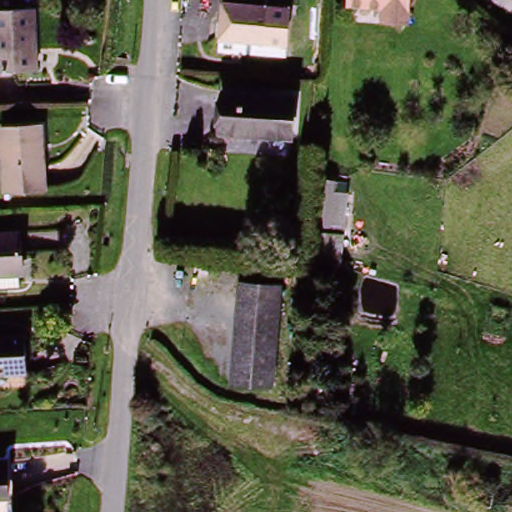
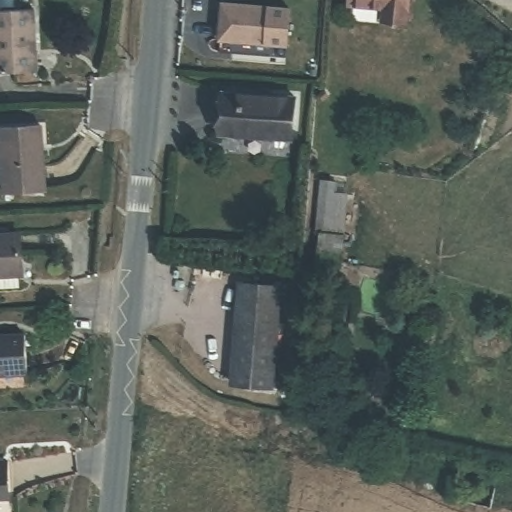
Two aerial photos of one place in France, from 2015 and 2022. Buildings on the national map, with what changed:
unchanged [(408,0),(407,10),(383,11),(383,5),(349,2),(349,0),(408,0)]
unchanged [(262,45),(216,40),(220,5),(265,9),(262,45)]
unchanged [(0,14),(35,11),(38,74),(0,76),(0,14)]
unchanged [(504,81),(512,65),(512,86),(504,81)]
unchanged [(225,93),(297,100),(293,142),(222,136),(225,93)]
unchanged [(0,130),(38,128),(42,192),(1,195),(0,180),(0,130)]
unchanged [(312,266),(325,177),(351,181),(340,271),(312,266)]
unchanged [(0,281),(0,240),(22,239),(23,266),(23,281),(23,291),(0,292),(0,281)]
unchanged [(239,287),(280,291),(270,392),(229,388),(239,287)]
unchanged [(0,377),(0,339),(26,337),(28,375),(0,377)]
unchanged [(9,498),(0,499),(0,462),(5,461),(9,498)]

